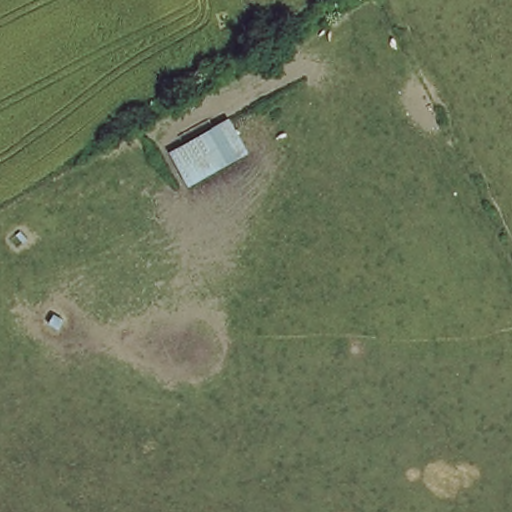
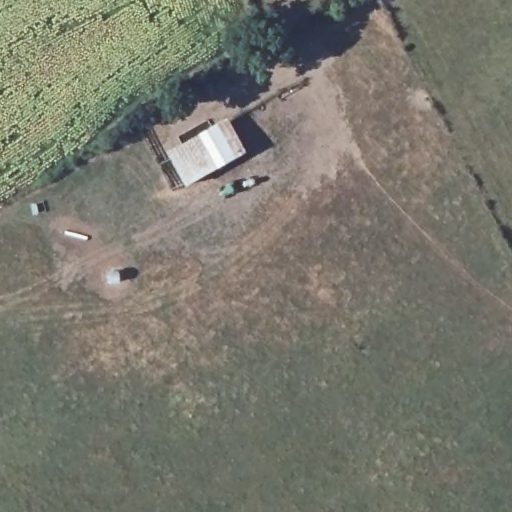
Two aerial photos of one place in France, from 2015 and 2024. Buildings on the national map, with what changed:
unchanged [(186,185),(168,154),(226,121),(243,151),(186,185)]

